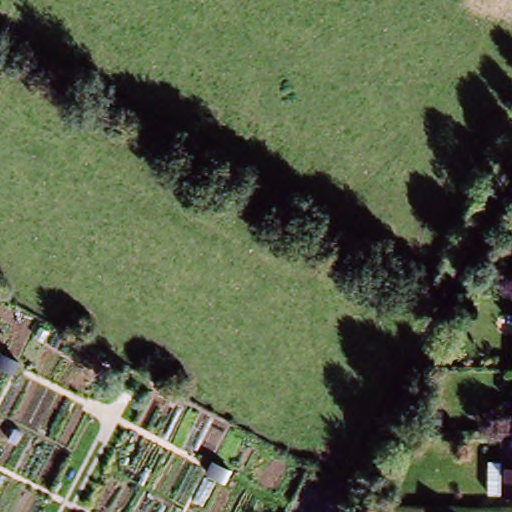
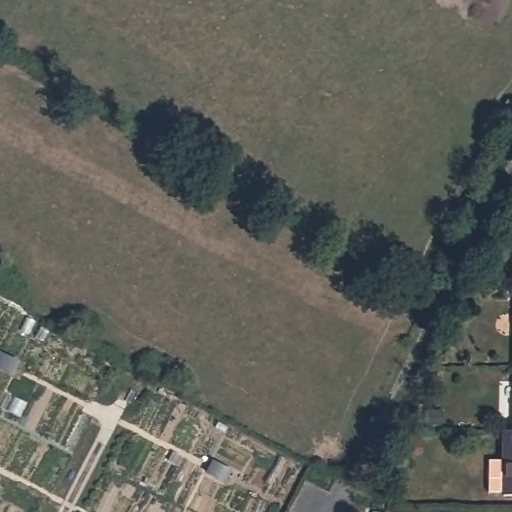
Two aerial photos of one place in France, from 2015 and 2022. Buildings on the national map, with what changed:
unchanged [(423,413),(429,412),(441,411),(439,430),(421,430),(423,413)]
unchanged [(485,462),(499,462),(500,432),(512,432),(512,496),(484,495),(485,462)]

